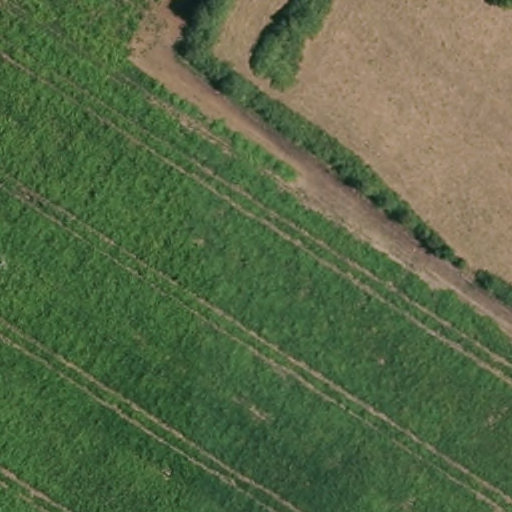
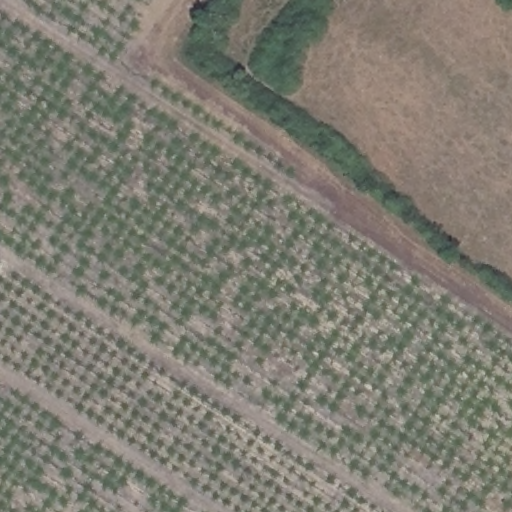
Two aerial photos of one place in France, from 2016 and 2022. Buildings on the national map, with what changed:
[]

